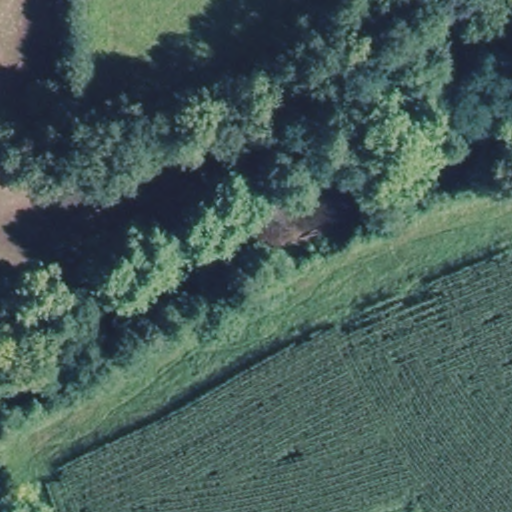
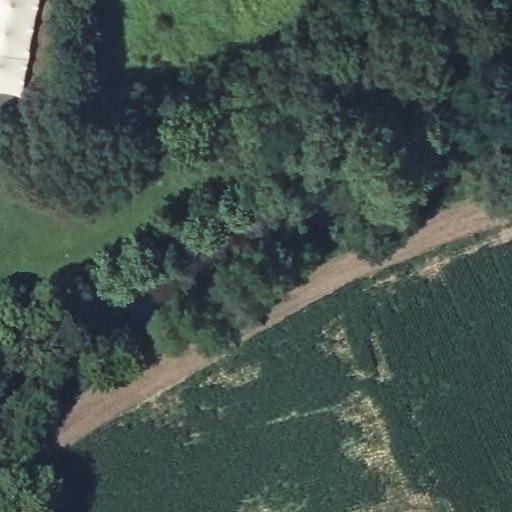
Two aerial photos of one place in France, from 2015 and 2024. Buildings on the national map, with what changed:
new [(41,0),(33,34),(22,93),(0,89),(0,0),(41,0)]

